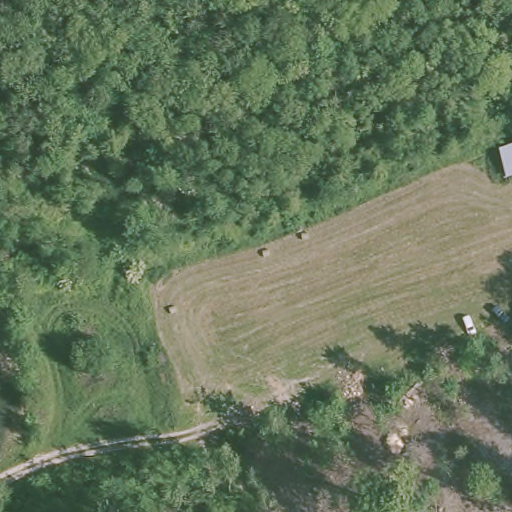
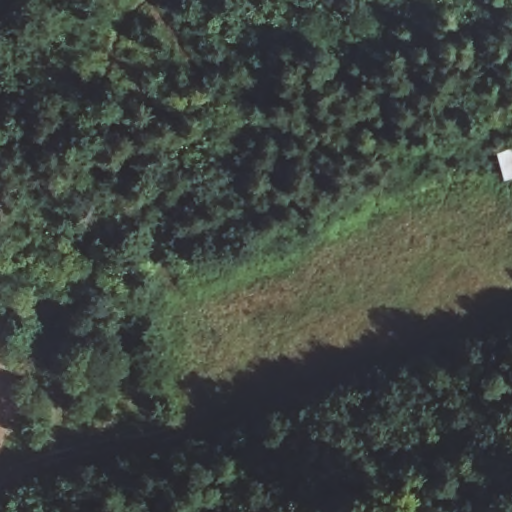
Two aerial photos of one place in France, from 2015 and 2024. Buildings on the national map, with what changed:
unchanged [(489,138),(512,131),(512,177),(501,181),(489,138)]

